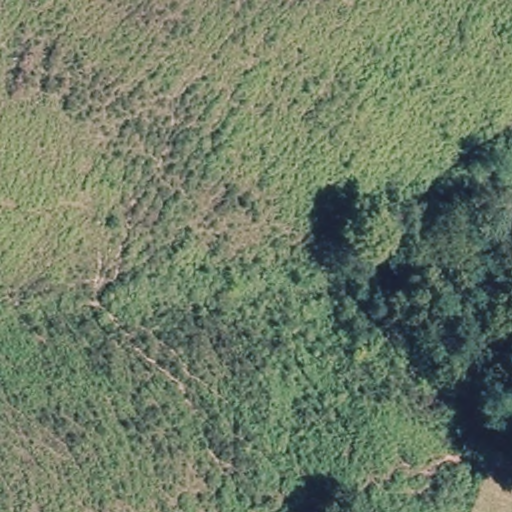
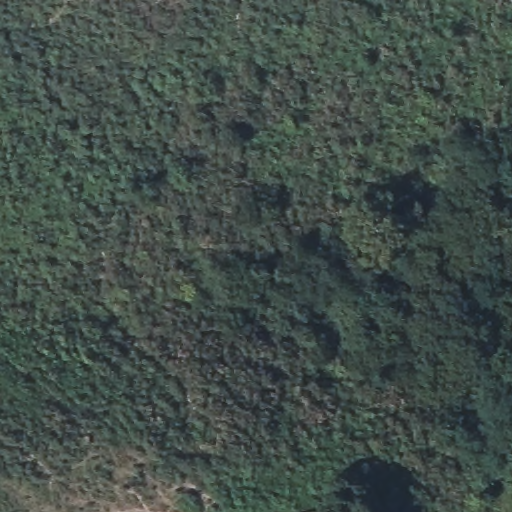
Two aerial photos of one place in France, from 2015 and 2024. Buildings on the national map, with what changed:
unchanged [(317,502),(319,512),(281,512),(281,511),(317,502)]

